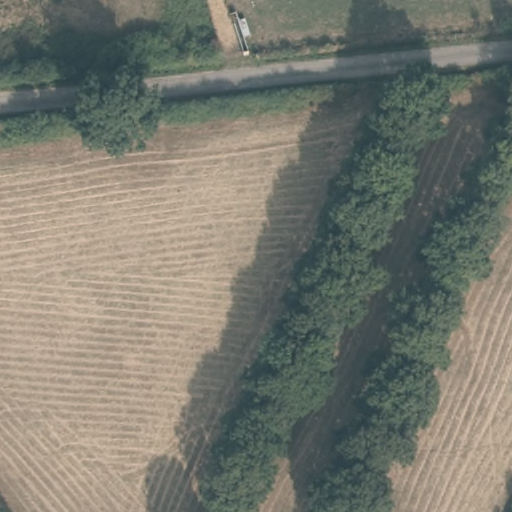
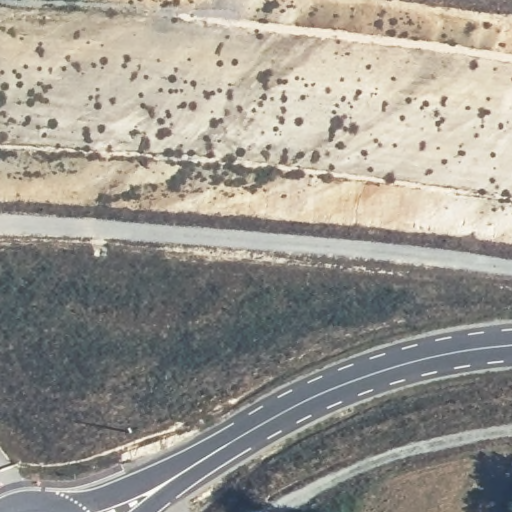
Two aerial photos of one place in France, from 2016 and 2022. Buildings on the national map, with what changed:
[]

